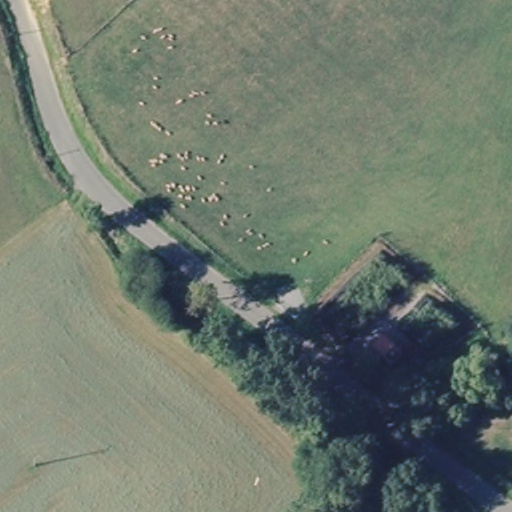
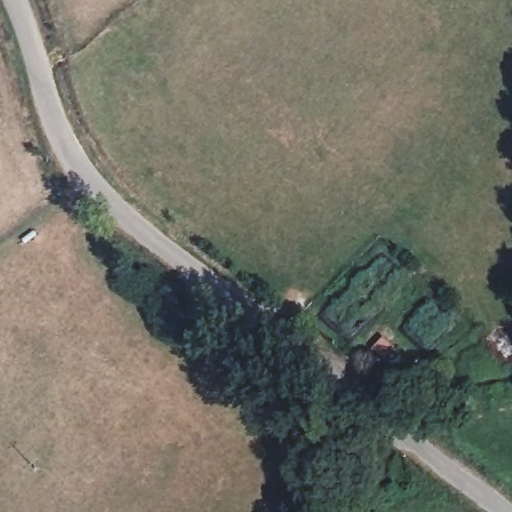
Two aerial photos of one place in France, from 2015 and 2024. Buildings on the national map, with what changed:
unchanged [(364,272),(383,287),(373,302),(353,286),(364,272)]

